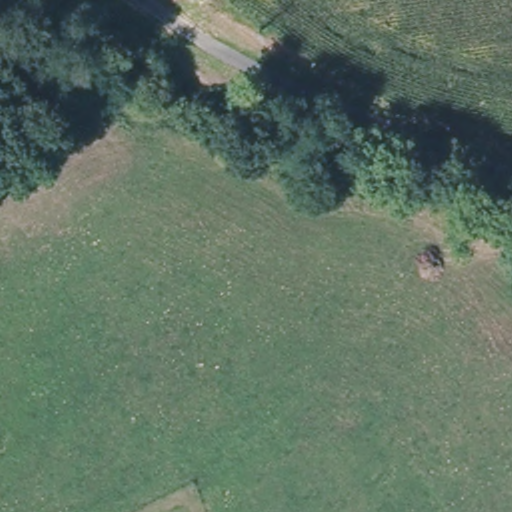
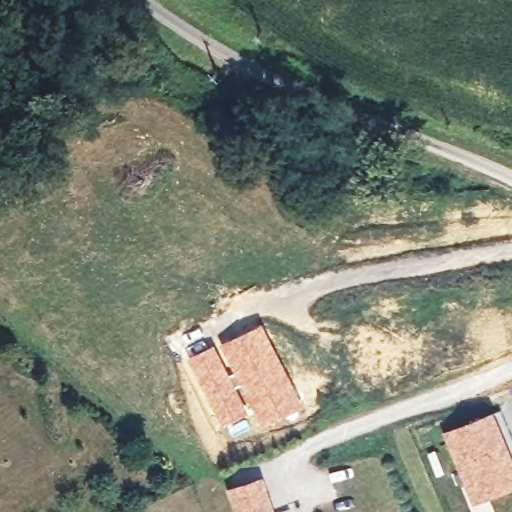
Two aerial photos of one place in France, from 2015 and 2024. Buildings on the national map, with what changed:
new [(262,322),(304,407),(260,427),(252,410),(249,412),(217,344),(262,322)]
new [(217,344),(249,412),(221,426),(187,359),(217,344)]
new [(512,488),(475,503),(444,430),(495,410),(512,451),(512,488)]
new [(276,512),(236,512),(227,487),(263,476),(276,512)]

